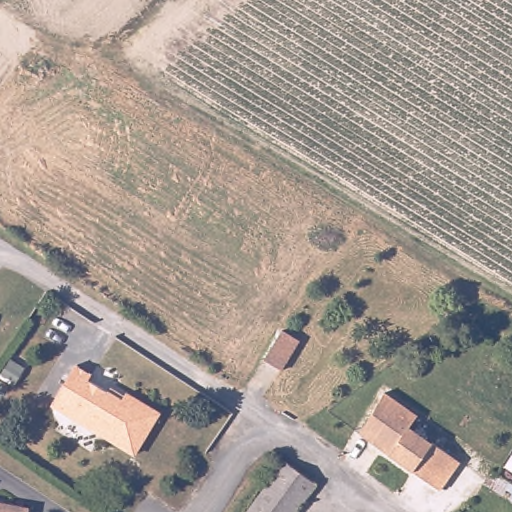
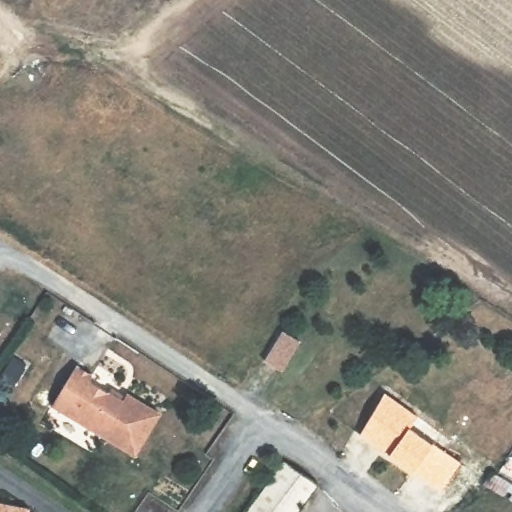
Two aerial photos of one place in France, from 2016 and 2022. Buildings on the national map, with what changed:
unchanged [(278,332),(297,342),(280,372),(262,361),(278,332)]
unchanged [(51,412),(76,371),(93,381),(90,387),(122,406),(126,400),(159,419),(134,462),(51,412)]
unchanged [(411,413),(417,417),(408,429),(431,445),(433,441),(461,459),(441,489),(360,434),(383,395),(411,413)]
unchanged [(314,488),(297,512),(252,512),(284,466),(314,488)]

